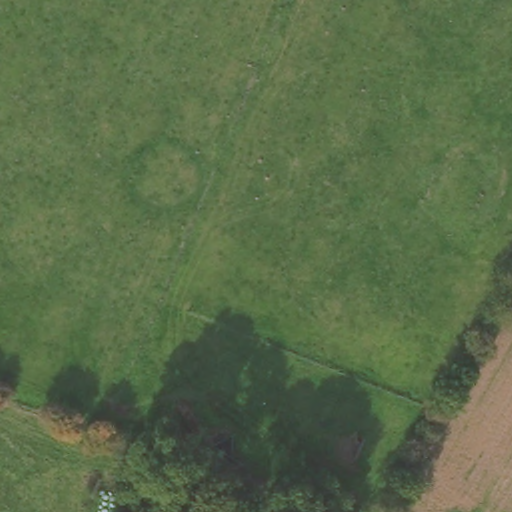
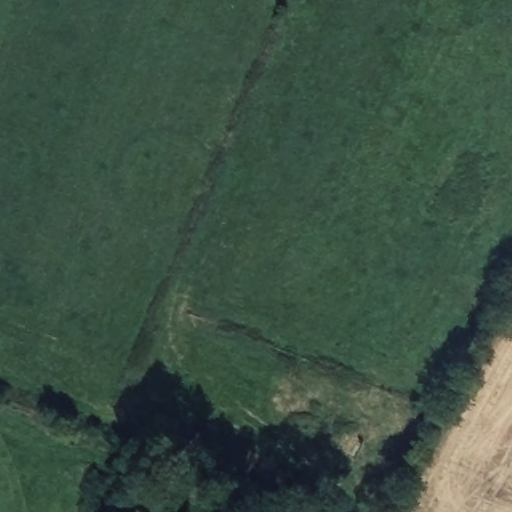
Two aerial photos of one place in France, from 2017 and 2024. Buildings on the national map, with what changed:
unchanged [(278,451),(269,477),(230,462),(240,437),(278,451)]

